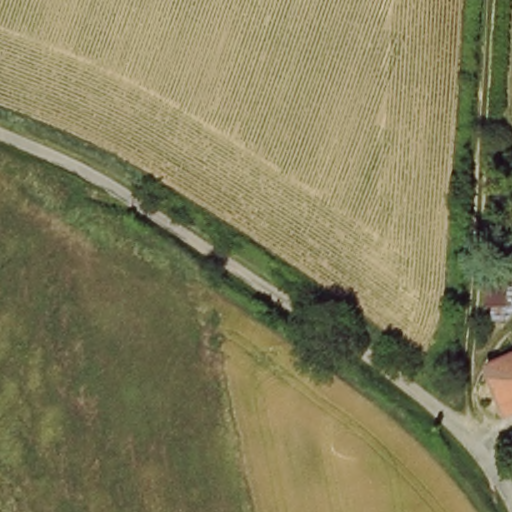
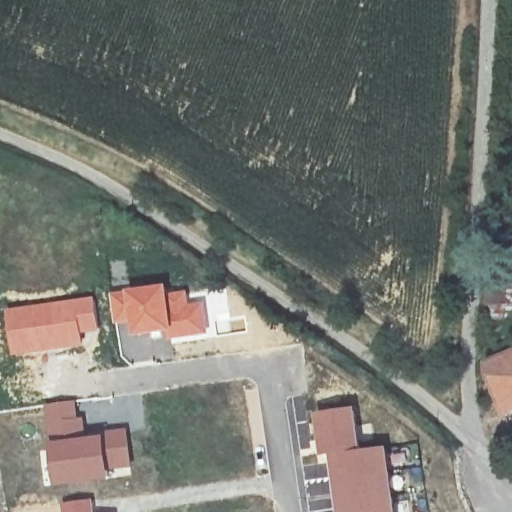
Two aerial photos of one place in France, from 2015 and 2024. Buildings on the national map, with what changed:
unchanged [(503,320),(487,317),(490,259),(512,260),(512,308),(503,320)]
new [(168,285),(170,294),(187,291),(189,303),(203,300),(208,335),(168,341),(167,334),(133,338),(130,324),(115,326),(112,294),(168,285)]
new [(95,297),(99,332),(82,334),(84,345),(10,356),(6,309),(95,297)]
unchanged [(505,419),(485,372),(485,364),(512,354),(512,416),(505,419)]
new [(111,472),(112,478),(58,486),(42,403),(75,399),(79,417),(83,416),(87,437),(105,434),(127,427),(132,468),(111,472)]
new [(357,408),(363,450),(328,457),(323,458),(317,414),(357,408)]
new [(389,447),(390,452),(405,451),(407,464),(392,466),(398,512),(335,512),(334,504),(328,457),(363,450),(389,447)]
new [(92,497),(96,512),(62,512),(60,502),(92,497)]
new [(109,512),(115,511),(115,512),(109,512)]

